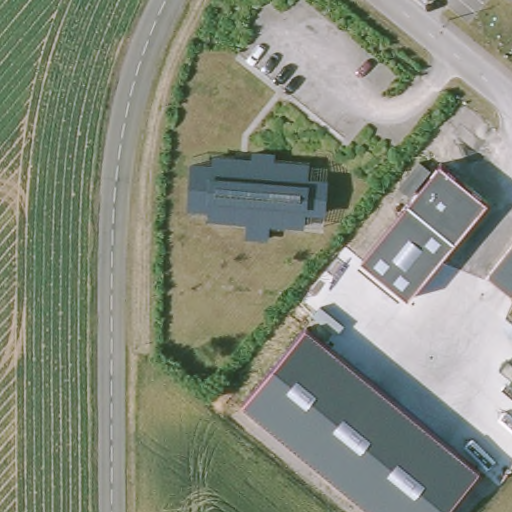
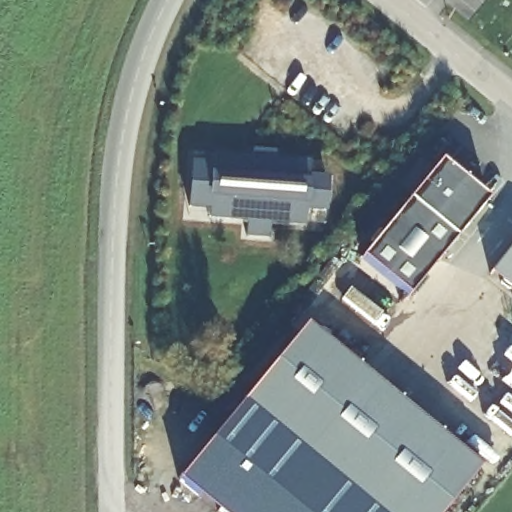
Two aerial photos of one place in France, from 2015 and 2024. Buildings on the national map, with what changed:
unchanged [(305,222),(270,220),(269,235),(245,232),(247,217),(210,215),(190,214),(190,205),(192,162),(193,154),(212,155),(235,156),(234,161),(251,162),(252,150),(275,151),(275,159),(310,161),(328,164),(327,178),(325,209),(324,224),(305,222)]
unchanged [(409,296),(362,257),(441,162),(488,200),(409,296)]
unchanged [(489,274),(512,244),(512,292),(489,274)]
new [(503,311),(512,300),(512,318),(503,311)]
unchanged [(482,469),(445,512),(378,512),(243,403),(306,325),(482,469)]
new [(179,480),(243,403),(378,512),(217,512),(179,480)]

